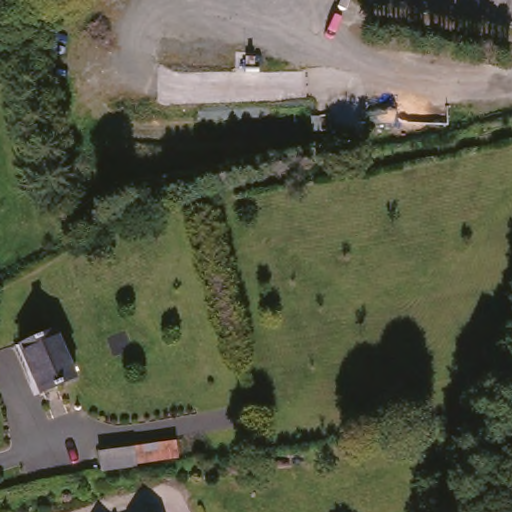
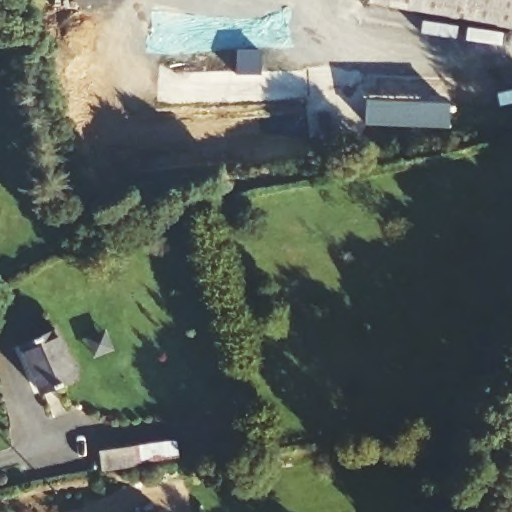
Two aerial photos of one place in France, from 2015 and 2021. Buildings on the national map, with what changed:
unchanged [(368,0),(512,0),(512,30),(367,4),(368,0)]
new [(449,103),(450,126),(364,124),(365,100),(449,103)]
unchanged [(21,346),(57,334),(72,385),(36,396),(21,346)]
unchanged [(100,451),(176,441),(179,460),(100,471),(100,451)]
new [(158,471),(159,488),(129,491),(127,474),(158,471)]
demolished [(118,475),(149,472),(151,489),(121,492),(118,475)]

